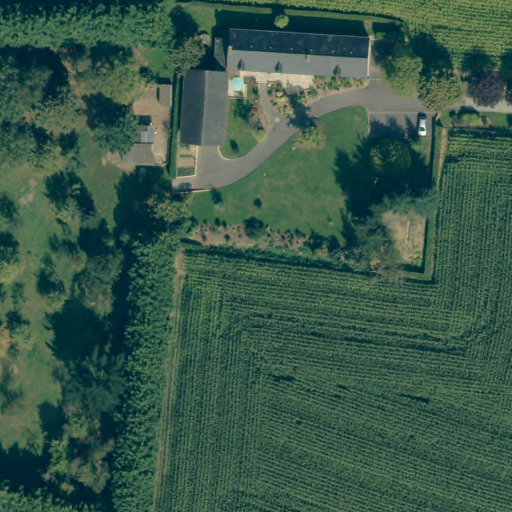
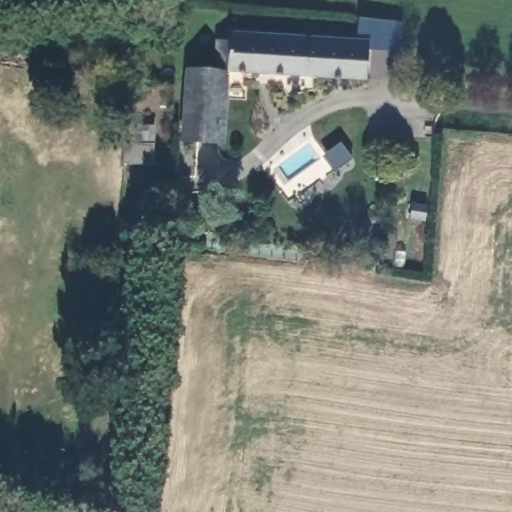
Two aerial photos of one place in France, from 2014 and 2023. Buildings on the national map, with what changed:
unchanged [(368,77),(216,64),(218,35),(227,35),(228,27),(371,41),(368,77)]
unchanged [(228,73),(223,118),(221,141),(183,138),(188,69),(228,73)]

